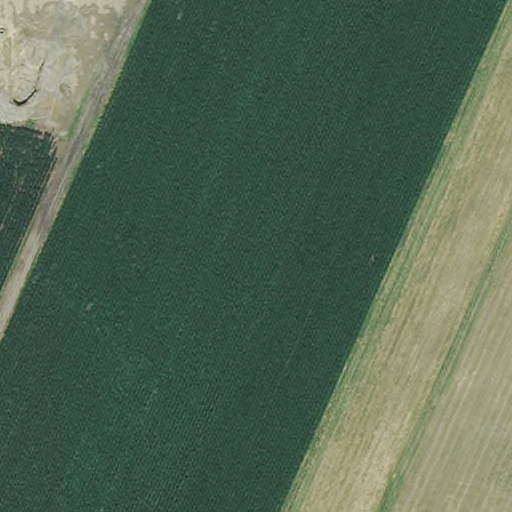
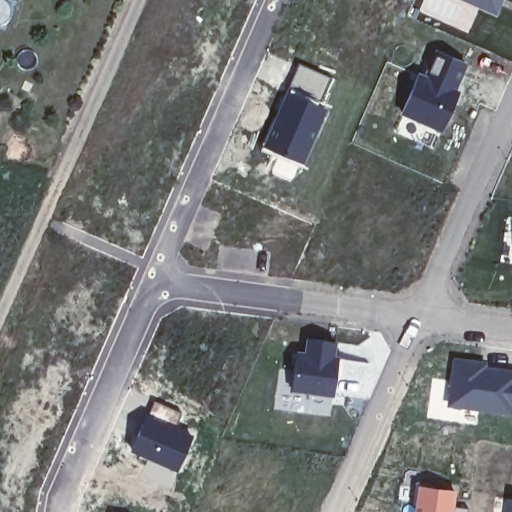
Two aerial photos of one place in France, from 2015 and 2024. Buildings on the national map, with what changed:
new [(499,15),(464,0),(506,0),(499,15)]
new [(441,131),(396,114),(416,70),(433,74),(445,53),(468,61),(441,131)]
new [(298,61),(333,76),(321,103),(285,89),(298,61)]
new [(285,89),(321,103),(327,106),(302,165),(260,145),(285,89)]
new [(335,355),(340,355),(336,397),(291,390),(296,347),(305,348),(305,335),(336,340),(335,355)]
new [(486,360),(486,366),(512,368),(512,413),(448,403),(455,357),(486,360)]
new [(153,398),(182,411),(176,425),(192,432),(177,470),(129,449),(153,398)]
new [(458,488),(455,505),(468,507),(467,512),(413,512),(416,482),(458,488)]
new [(512,495),(512,512),(501,512),(503,494),(512,495)]
new [(115,512),(110,512),(111,510),(115,512)]

